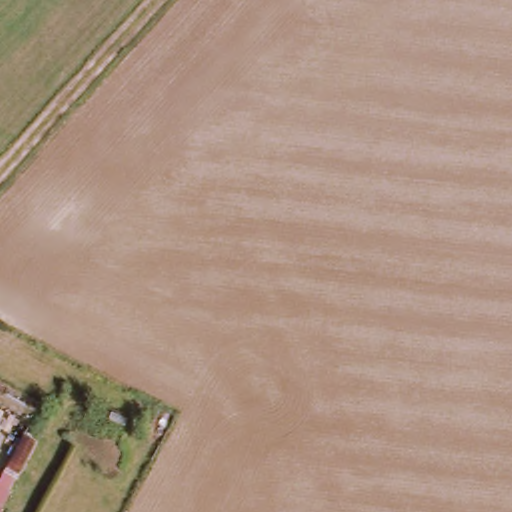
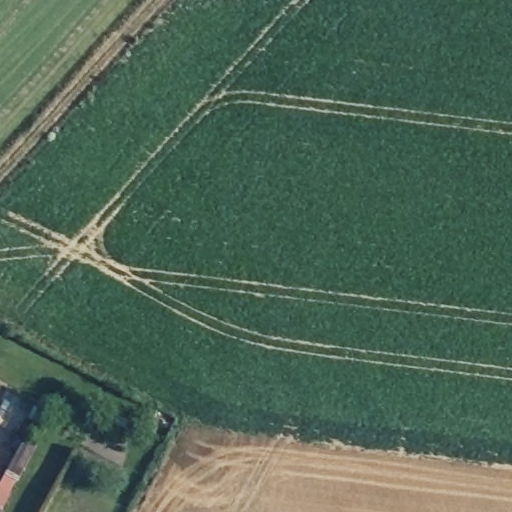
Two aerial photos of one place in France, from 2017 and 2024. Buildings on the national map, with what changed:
unchanged [(20,435),(43,445),(27,480),(17,475),(0,510),(0,481),(5,471),(20,435)]

